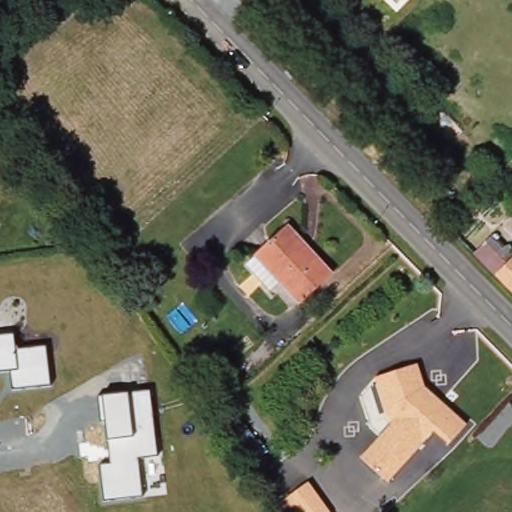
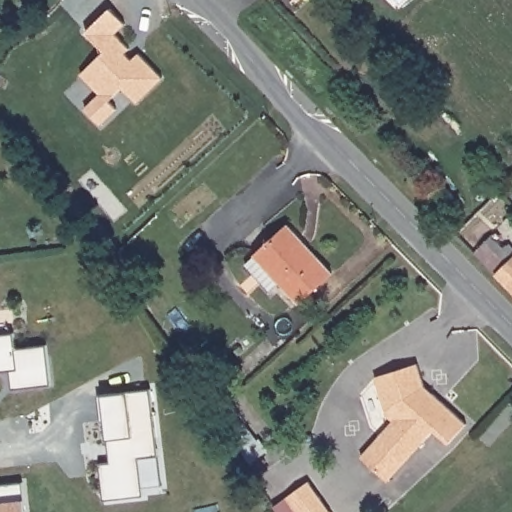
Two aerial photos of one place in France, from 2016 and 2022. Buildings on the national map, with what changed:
new [(105,51),(86,32),(111,9),(125,24),(115,34),(129,49),(125,53),(132,60),(139,54),(162,78),(137,102),(122,88),(109,101),(117,109),(101,125),(85,109),(100,94),(81,74),(105,51)]
unchanged [(497,218),(483,203),(497,188),(512,204),(512,291),(467,248),(497,218)]
unchanged [(332,275),(300,304),(272,273),(260,285),(243,265),(288,223),(332,275)]
unchanged [(49,385),(12,390),(10,370),(0,372),(0,336),(12,334),(14,349),(45,346),(49,385)]
unchanged [(448,448),(432,433),(387,483),(360,457),(392,421),(385,414),(372,379),(417,364),(425,387),(468,425),(448,448)]
unchanged [(155,456),(136,458),(140,496),(104,501),(99,465),(109,464),(103,422),(99,422),(96,394),(151,388),(155,456)]
new [(23,482),(26,512),(0,512),(0,485),(23,482)]
unchanged [(308,482),(330,512),(292,512),(283,499),(308,482)]

